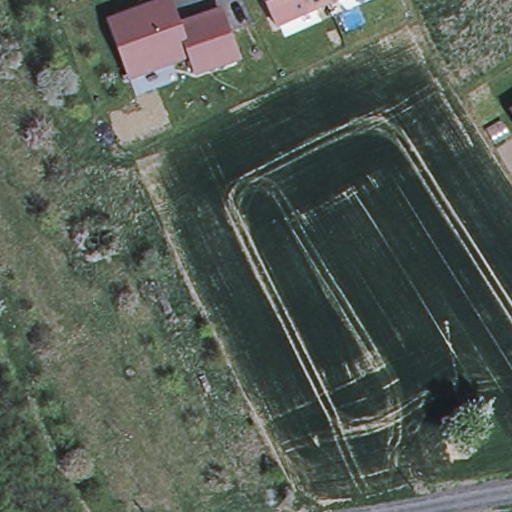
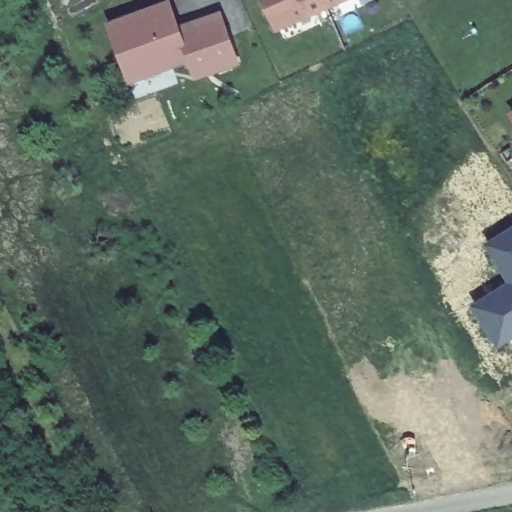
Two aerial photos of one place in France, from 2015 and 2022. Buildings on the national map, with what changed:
unchanged [(275,29),(263,0),(324,0),(327,6),(275,29)]
unchanged [(324,0),(342,0),(327,6),(324,0)]
unchanged [(165,3),(174,25),(181,28),(217,16),(233,62),(190,77),(183,56),(161,63),(162,67),(125,81),(105,24),(165,3)]
new [(468,306),(505,285),(483,244),(512,227),(512,342),(497,349),(468,306)]

